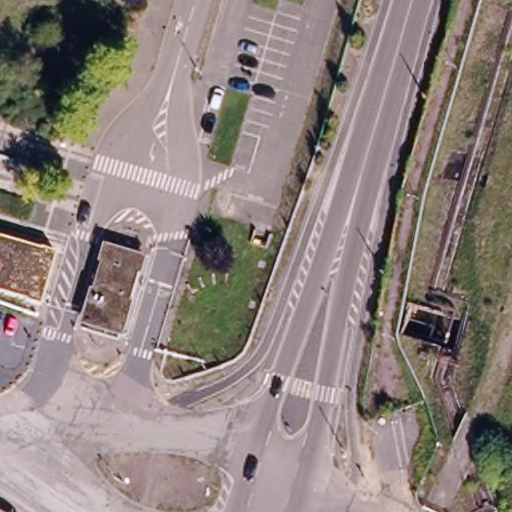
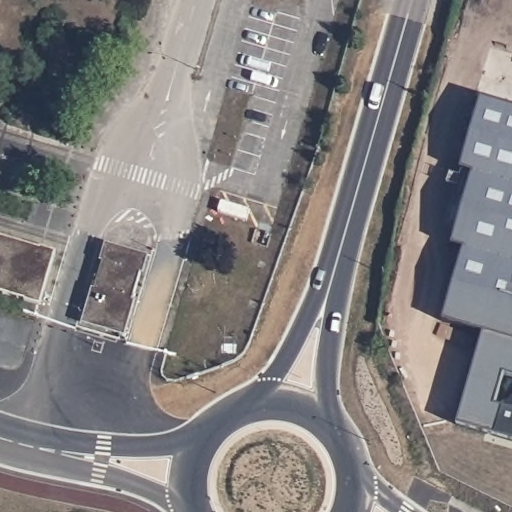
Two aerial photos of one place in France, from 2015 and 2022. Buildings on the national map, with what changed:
new [(458,423),(486,331),(445,320),(466,247),(453,245),(474,171),(463,167),(482,99),(512,107),(512,376),(503,373),(495,405),(512,409),(512,439),(458,423)]
unchanged [(39,303),(0,292),(0,238),(52,254),(39,303)]
unchanged [(147,257),(142,275),(137,274),(130,299),(134,301),(124,337),(80,323),(90,288),(94,290),(102,262),(99,261),(104,244),(147,257)]

